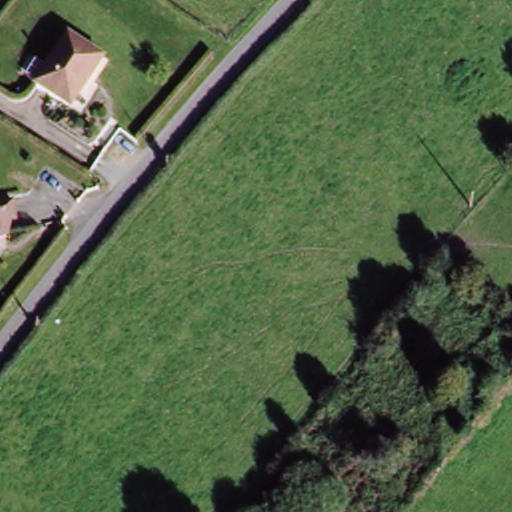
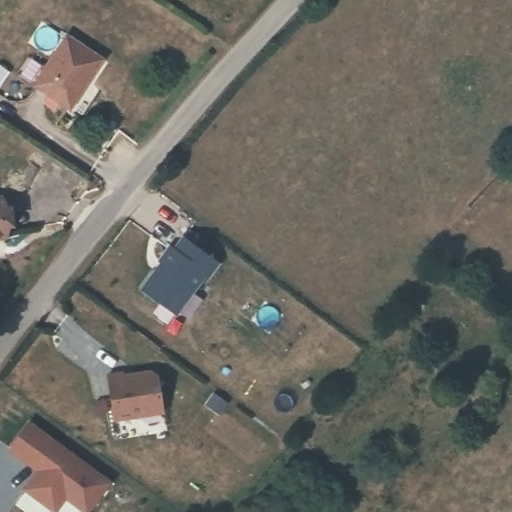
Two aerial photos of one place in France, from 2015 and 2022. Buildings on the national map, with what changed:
unchanged [(97,59),(65,111),(27,87),(60,37),(97,59)]
unchanged [(0,239),(0,222),(2,239),(0,239)]
new [(162,263),(159,262),(170,247),(175,250),(183,238),(219,264),(209,278),(205,276),(178,315),(142,290),(162,263)]
new [(125,373),(126,376),(159,370),(165,413),(115,422),(109,376),(125,373)]
new [(110,484),(90,512),(84,512),(67,499),(58,512),(54,512),(26,491),(40,472),(12,451),(30,426),(110,484)]

